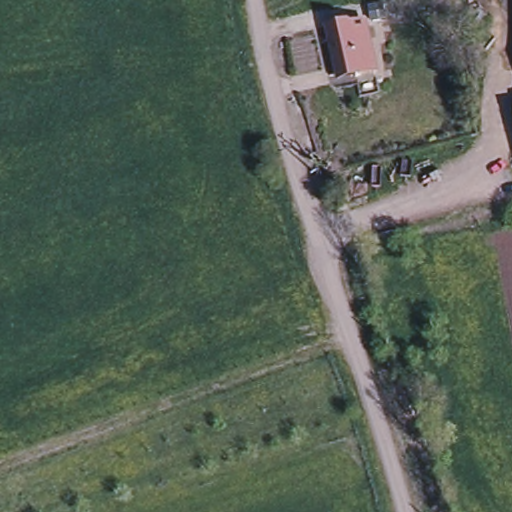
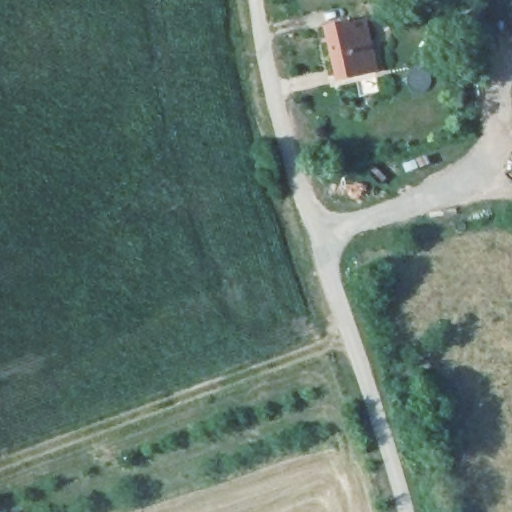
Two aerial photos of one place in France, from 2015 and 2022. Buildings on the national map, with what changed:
unchanged [(333,80),(332,73),(322,25),(340,21),(341,25),(360,21),(369,66),(370,72),(333,80)]

